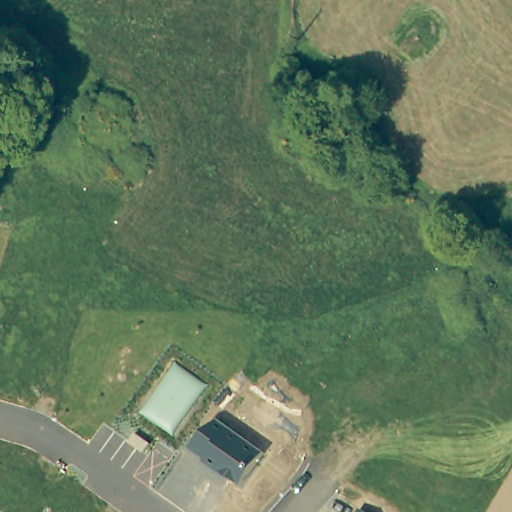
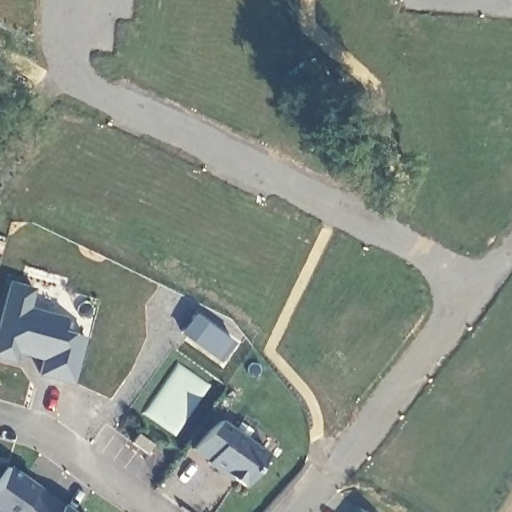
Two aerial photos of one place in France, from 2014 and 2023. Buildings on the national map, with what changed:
new [(30,307),(66,315),(62,329),(85,335),(71,385),(36,377),(41,360),(16,353),(12,364),(0,360),(0,309),(7,280),(34,287),(30,307)]
new [(221,361),(179,332),(192,313),(232,342),(221,361)]
unchanged [(205,463),(206,459),(192,449),(220,419),(268,452),(242,485),(205,463)]
new [(10,465),(76,512),(0,512),(0,479),(10,465)]
unchanged [(365,512),(359,512),(361,509),(365,512)]

